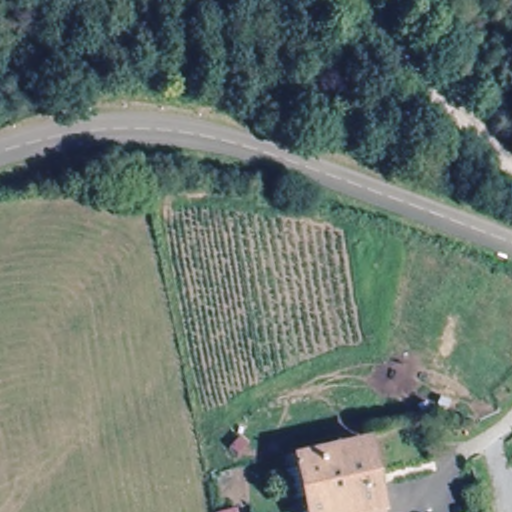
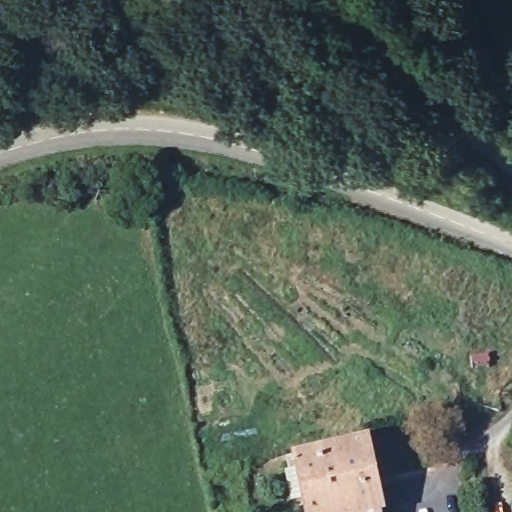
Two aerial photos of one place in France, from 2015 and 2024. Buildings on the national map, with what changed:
unchanged [(381,512),(307,512),(301,457),(375,447),(381,512)]

